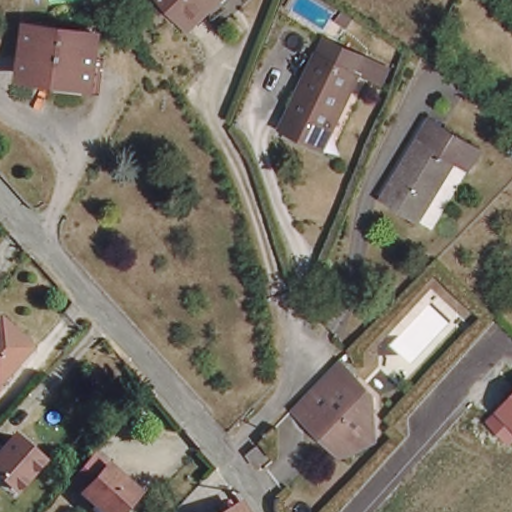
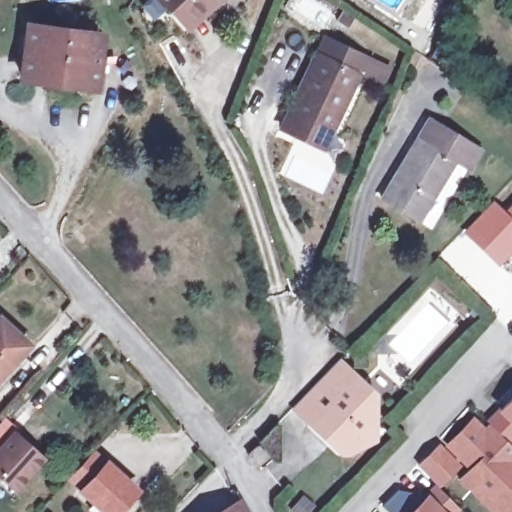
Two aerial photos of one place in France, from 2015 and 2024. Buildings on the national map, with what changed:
unchanged [(179,24),(156,0),(205,0),(179,24)]
unchanged [(92,91),(20,81),(27,30),(78,36),(80,26),(94,28),(92,38),(99,39),(92,91)]
unchanged [(302,149),(276,137),(312,63),(319,47),(354,64),(358,66),(350,81),(322,141),(315,155),(302,149)]
unchanged [(472,167),(460,159),(423,219),(387,197),(423,137),(434,119),(446,127),(483,149),(472,167)]
new [(492,199),(503,209),(512,200),(512,255),(500,267),(462,232),(492,199)]
unchanged [(0,319),(27,344),(0,374),(0,319)]
unchanged [(362,442),(353,450),(348,450),(342,448),(315,421),(298,405),(318,384),(343,359),(378,394),(378,422),(377,437),(362,442)]
unchanged [(512,396),(512,442),(510,444),(488,419),(512,396)]
new [(488,419),(510,444),(512,446),(512,512),(491,512),(458,478),(467,468),(459,460),(457,463),(440,448),(473,416),(482,425),(488,419)]
unchanged [(0,476),(0,446),(12,433),(40,458),(13,488),(0,476)]
unchanged [(267,457),(257,464),(248,453),(257,445),(267,457)]
new [(437,485),(418,465),(437,445),(457,463),(437,485)]
unchanged [(124,512),(100,512),(75,486),(98,460),(138,498),(124,512)]
unchanged [(457,507),(453,512),(410,512),(436,485),(457,507)]
unchanged [(242,512),(220,512),(237,503),(242,512)]

